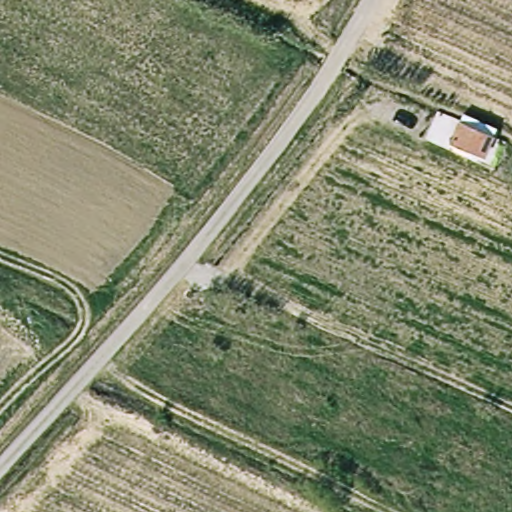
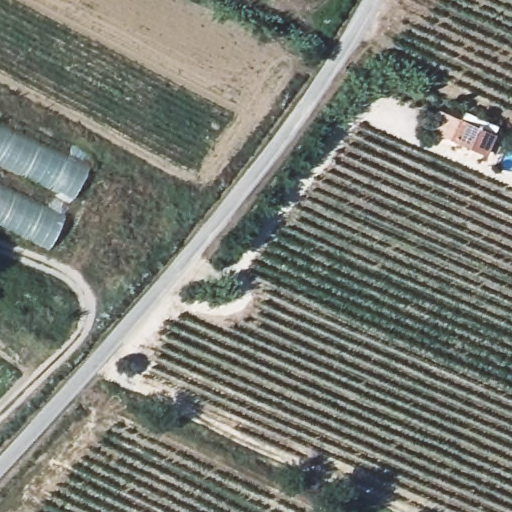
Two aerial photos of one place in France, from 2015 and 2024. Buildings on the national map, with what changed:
new [(72,201),(0,167),(0,123),(90,166),(72,201)]
unchanged [(448,146),(457,125),(495,141),(486,163),(448,146)]
new [(49,251),(0,228),(0,184),(66,216),(49,251)]

